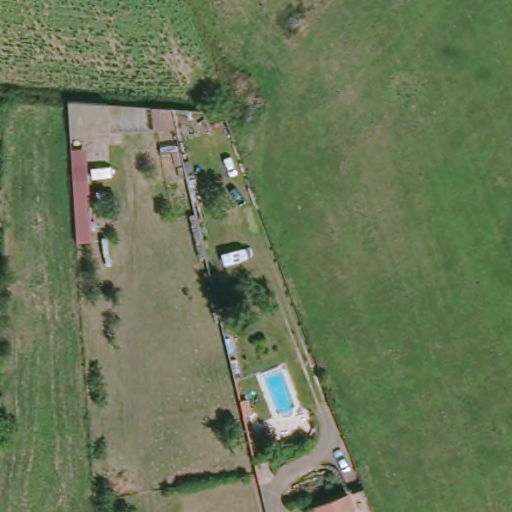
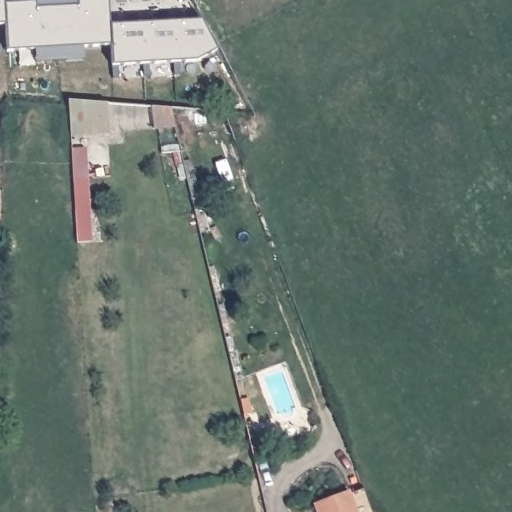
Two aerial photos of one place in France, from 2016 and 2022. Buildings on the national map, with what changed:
new [(4,4),(37,2),(38,9),(78,7),(77,0),(110,0),(111,26),(203,20),(219,51),(196,62),(112,66),(110,46),(83,48),(84,60),(35,63),(34,50),(7,52),(5,25),(0,25),(0,0),(4,0),(4,4)]
unchanged [(83,104),(105,105),(108,136),(84,138),(83,104)]
unchanged [(81,247),(76,178),(93,178),(100,246),(81,247)]
unchanged [(246,391),(249,406),(243,407),(242,402),(239,393),(246,391)]
unchanged [(351,496),(358,512),(319,512),(318,510),(351,496)]

